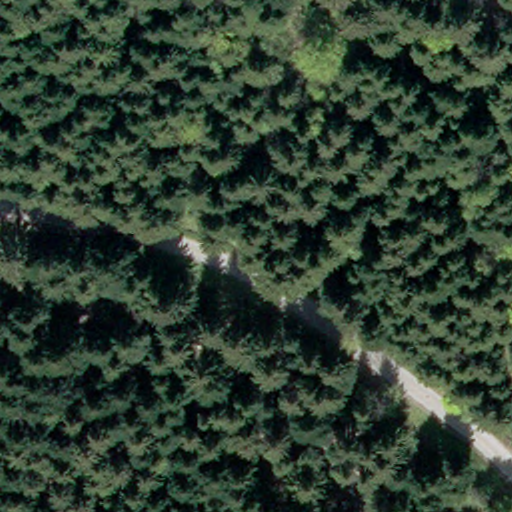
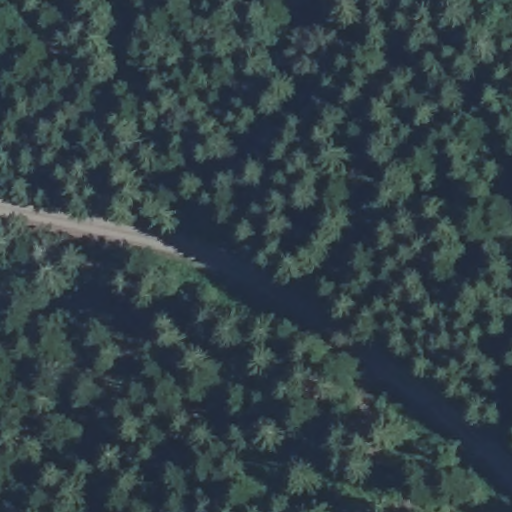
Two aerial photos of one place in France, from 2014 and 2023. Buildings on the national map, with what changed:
unchanged [(499,22),(484,46),(471,38),(485,13),(499,22)]

